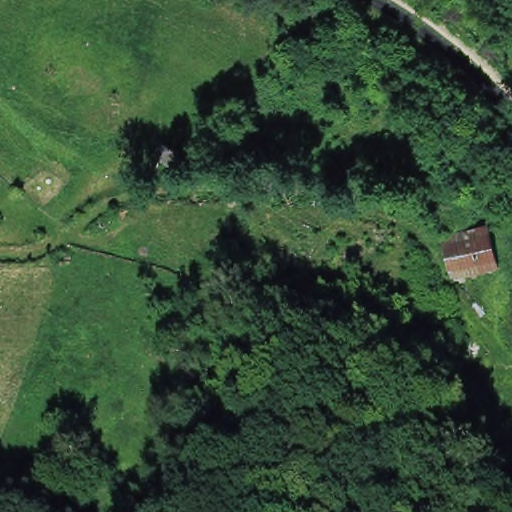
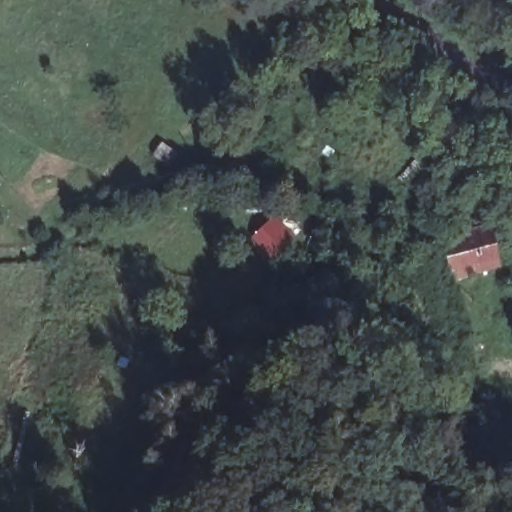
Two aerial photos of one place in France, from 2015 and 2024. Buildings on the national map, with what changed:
unchanged [(487,220),(496,261),(450,271),(441,230),(487,220)]

